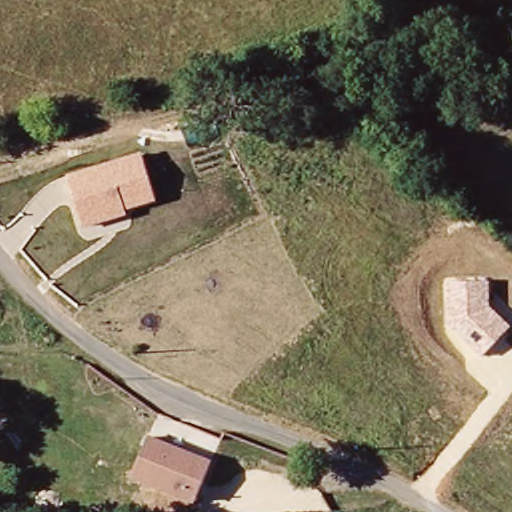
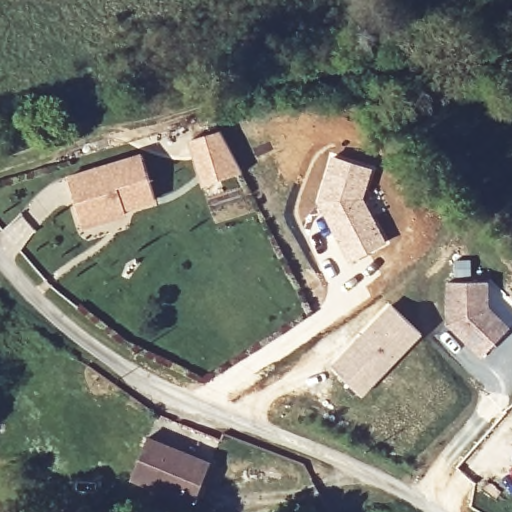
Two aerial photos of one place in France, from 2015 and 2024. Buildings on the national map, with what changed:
new [(221,131),(234,174),(205,184),(191,140),(221,131)]
unchanged [(157,202),(127,211),(128,215),(84,228),(68,176),(143,153),(157,202)]
new [(330,154),(374,167),(365,198),(388,242),(349,264),(316,204),(330,154)]
unchanged [(490,307),(511,326),(482,357),(448,324),(447,282),(490,280),(490,307)]
new [(394,304),(424,332),(365,394),(336,367),(394,304)]
unchanged [(199,505),(136,480),(152,440),(216,465),(199,505)]

